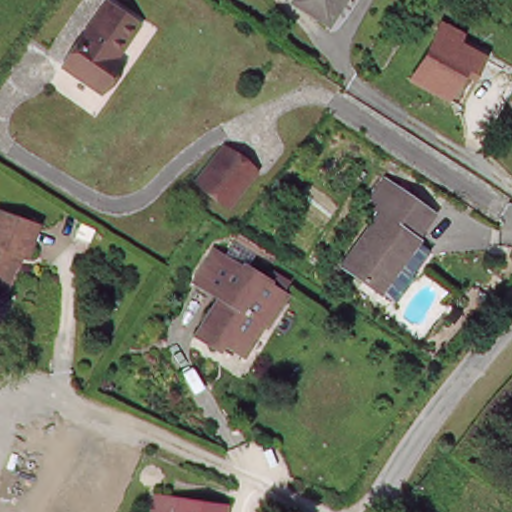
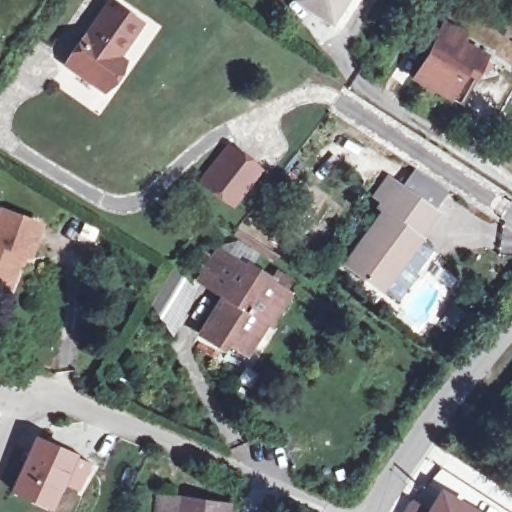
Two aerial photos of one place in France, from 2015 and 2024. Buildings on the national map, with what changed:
unchanged [(296,2),(297,0),(348,0),(332,24),(296,2)]
unchanged [(112,73),(100,91),(62,65),(105,4),(135,24),(111,58),(119,63),(112,73)]
unchanged [(457,101),(415,77),(442,32),(484,55),(488,58),(481,71),(461,103),(457,101)]
unchanged [(229,148),(258,171),(232,204),(203,181),(229,148)]
unchanged [(383,287),(345,261),(384,208),(380,205),(385,199),(375,191),(387,173),(434,207),(417,232),(420,235),(383,287)]
unchanged [(294,191),(280,212),(266,202),(280,181),(294,191)]
unchanged [(0,210),(38,223),(26,255),(22,254),(10,288),(0,285),(0,211),(0,210)]
unchanged [(220,346),(201,335),(213,314),(219,317),(226,305),(221,302),(225,296),(200,281),(218,252),(245,268),(246,265),(271,280),(270,283),(287,294),(270,323),(266,321),(247,353),(243,360),(220,346)]
unchanged [(457,304),(465,309),(458,320),(450,315),(457,304)]
new [(81,495),(63,487),(53,510),(16,494),(39,443),(76,459),(93,467),(81,495)]
unchanged [(170,489),(170,492),(228,500),(227,512),(154,512),(157,487),(170,489)]
new [(473,512),(429,512),(440,492),(473,512)]
new [(427,512),(405,512),(410,502),(427,512)]

